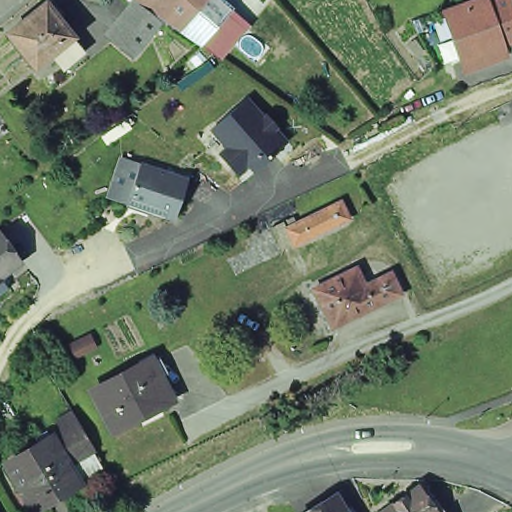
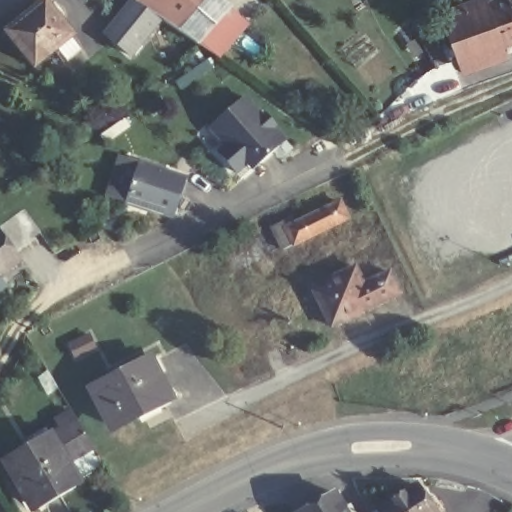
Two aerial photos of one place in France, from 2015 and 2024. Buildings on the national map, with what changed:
unchanged [(30,61),(2,27),(36,0),(45,0),(70,29),(64,33),(73,44),(61,53),(52,43),(30,61)]
unchanged [(233,44),(222,59),(200,46),(180,31),(163,21),(133,59),(104,36),(132,0),(221,0),(250,27),(247,32),(267,50),(257,63),(233,44)]
unchanged [(465,7),(483,0),(491,0),(493,5),(508,0),(512,0),(512,45),(462,63),(445,13),(465,7)]
unchanged [(252,174),(246,169),(239,175),(219,152),(225,147),(213,130),(250,98),(287,142),(252,174)]
unchanged [(130,204),(142,164),(188,179),(175,218),(130,204)]
unchanged [(287,229),(340,203),(347,218),(295,244),(281,250),(270,228),(284,221),(287,229)]
unchanged [(0,281),(0,230),(24,265),(0,281)]
unchanged [(308,289),(350,268),(360,285),(385,272),(395,293),(327,327),(308,289)]
unchanged [(138,352),(157,388),(102,416),(83,380),(138,352)]
unchanged [(78,414),(94,440),(65,458),(75,474),(32,500),(7,458),(78,414)]
unchanged [(375,503),(412,479),(424,497),(429,494),(437,507),(441,512),(365,512),(364,510),(375,503)]
unchanged [(330,489),(344,512),(293,512),(292,511),(330,489)]

